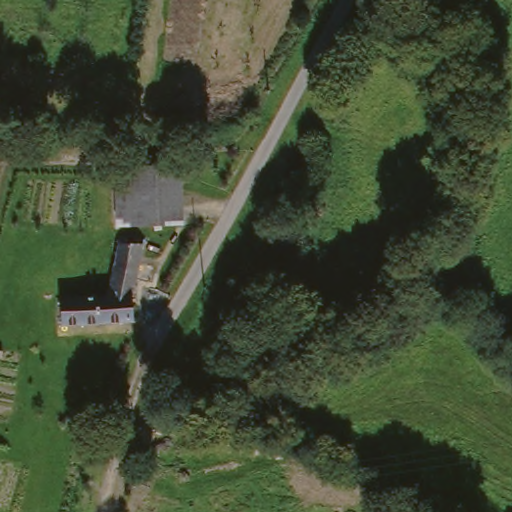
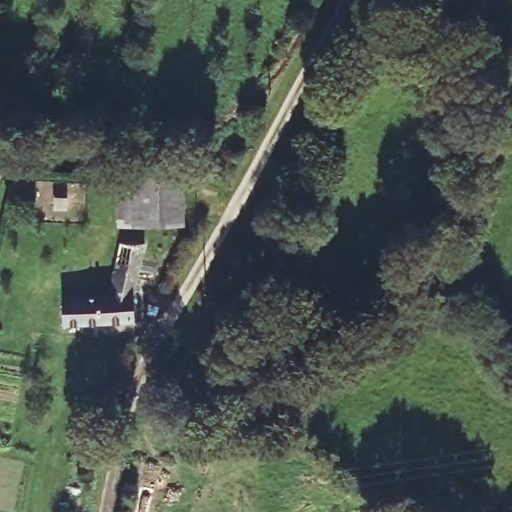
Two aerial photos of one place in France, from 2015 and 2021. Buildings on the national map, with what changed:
unchanged [(123,162),(184,160),(186,219),(126,221),(123,162)]
unchanged [(142,239),(131,290),(133,316),(73,316),(74,293),(107,293),(120,234),(142,239)]

